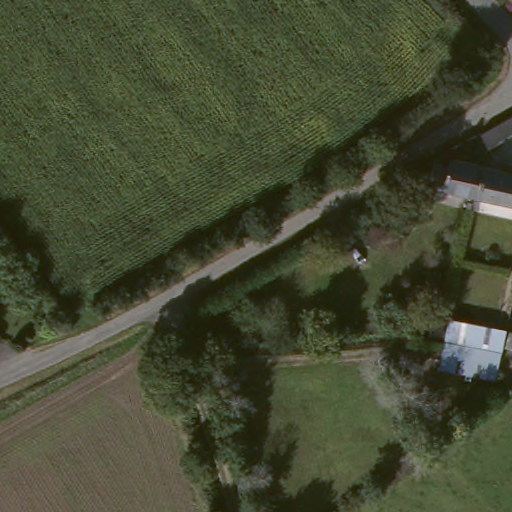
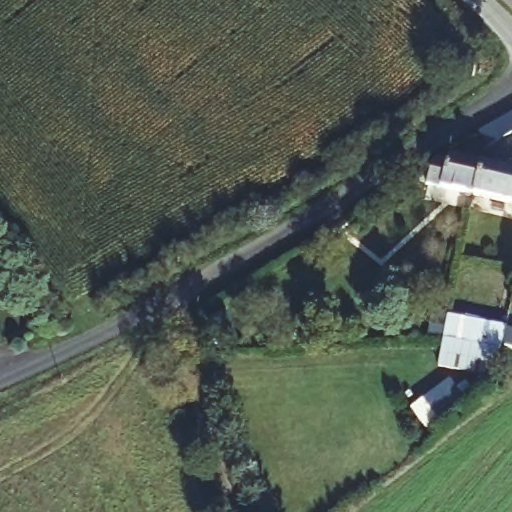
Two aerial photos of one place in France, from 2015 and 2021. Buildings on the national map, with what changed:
unchanged [(512,0),(512,4),(507,0),(512,0)]
unchanged [(512,141),(494,153),(484,143),(481,139),(486,136),(512,120),(512,141)]
unchanged [(456,194),(443,190),(454,158),(479,164),(512,171),(512,207),(471,197),(456,194)]
unchanged [(448,314),(507,327),(502,352),(442,338),(448,314)]
unchanged [(216,318),(234,316),(237,345),(219,347),(216,318)]
unchanged [(512,332),(512,350),(507,349),(511,332),(512,332)]
unchanged [(442,338),(502,352),(493,383),(434,368),(442,338)]

